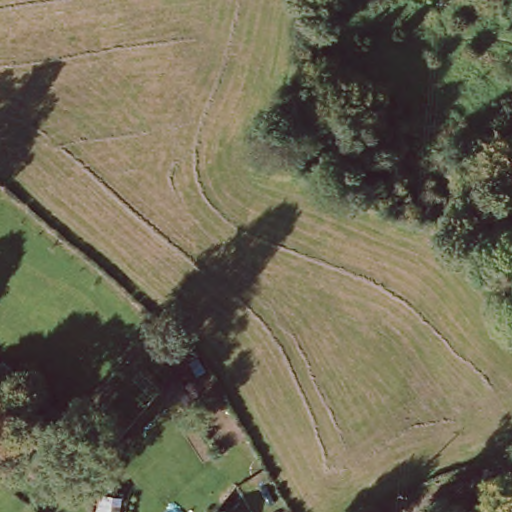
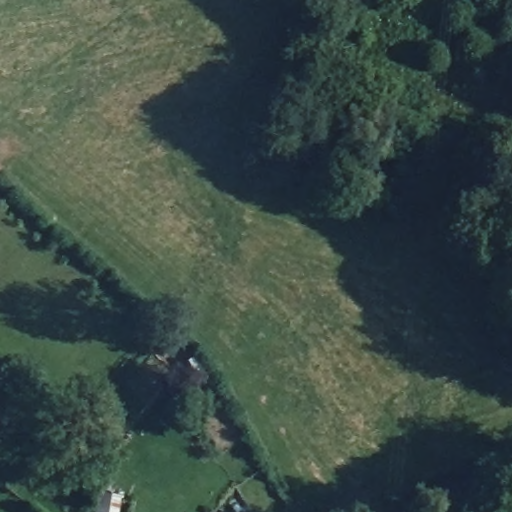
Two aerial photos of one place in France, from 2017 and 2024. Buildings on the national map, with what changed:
unchanged [(123,496),(122,512),(96,512),(98,494),(123,496)]

